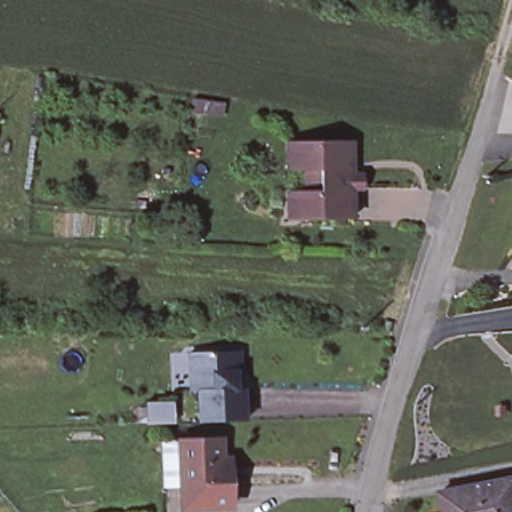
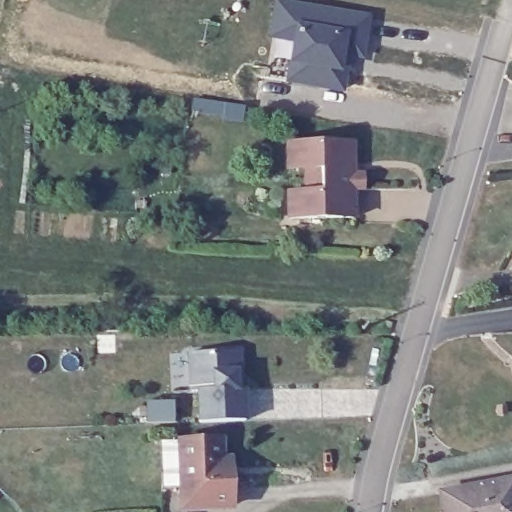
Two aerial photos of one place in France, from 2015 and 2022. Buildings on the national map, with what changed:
new [(288,64),(291,41),(268,38),(274,0),(283,0),(371,15),(364,60),(349,57),(343,92),(285,84),(288,64)]
unchanged [(283,170),(283,144),(348,143),(348,174),(358,173),(359,190),(349,190),(349,219),(284,220),(284,195),(301,194),(301,170),(283,170)]
unchanged [(383,332),(386,320),(393,322),(389,334),(383,332)]
unchanged [(198,421),(198,390),(190,390),(188,351),(238,350),(238,372),(239,387),(240,420),(224,420),(198,421)]
new [(176,401),(176,422),(147,423),(146,401),(176,401)]
unchanged [(224,465),(233,465),(234,486),(235,510),(187,511),(186,490),(166,491),(165,446),(185,445),(223,444),(224,465)]
unchanged [(512,512),(443,512),(441,496),(512,483),(512,512)]

